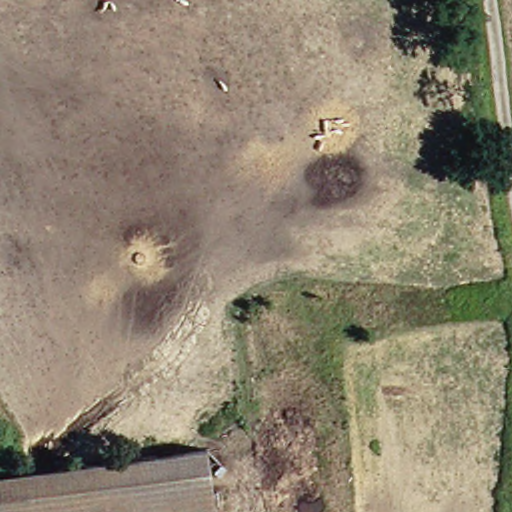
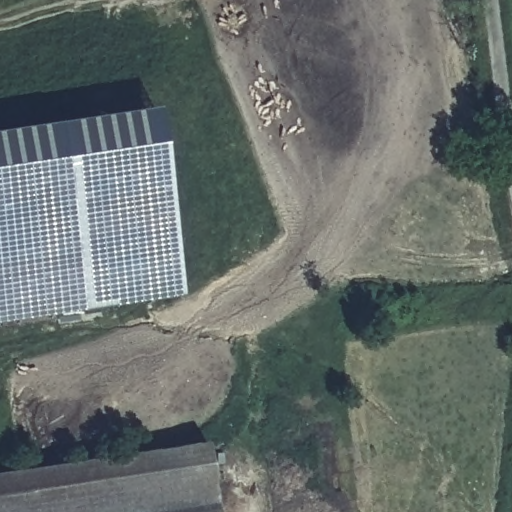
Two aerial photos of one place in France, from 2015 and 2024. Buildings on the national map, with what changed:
new [(190,297),(0,324),(0,134),(169,108),(190,297)]
unchanged [(224,512),(0,512),(0,477),(214,444),(224,512)]

